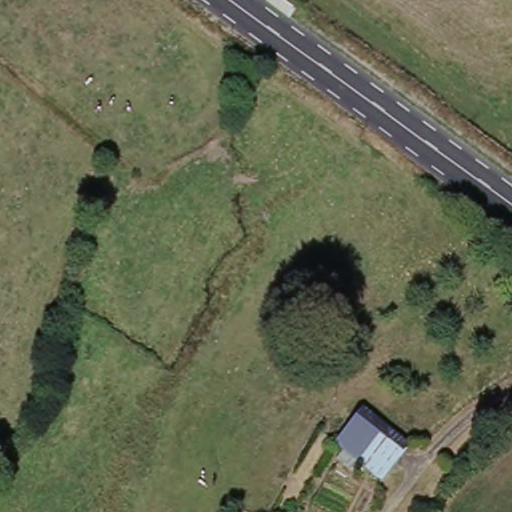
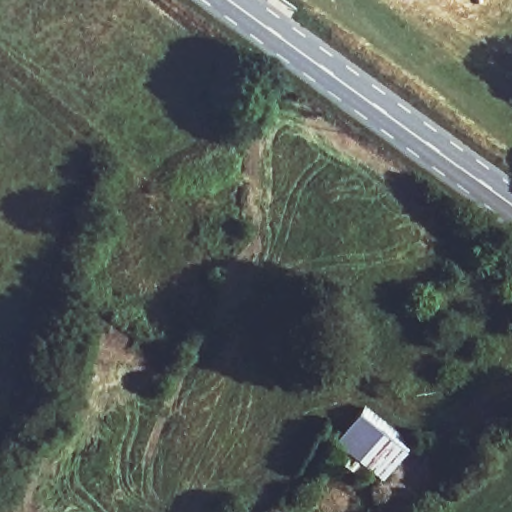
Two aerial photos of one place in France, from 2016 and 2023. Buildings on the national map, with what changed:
unchanged [(400,463),(387,480),(340,442),(353,426),(368,408),(395,429),(415,444),(400,463)]

